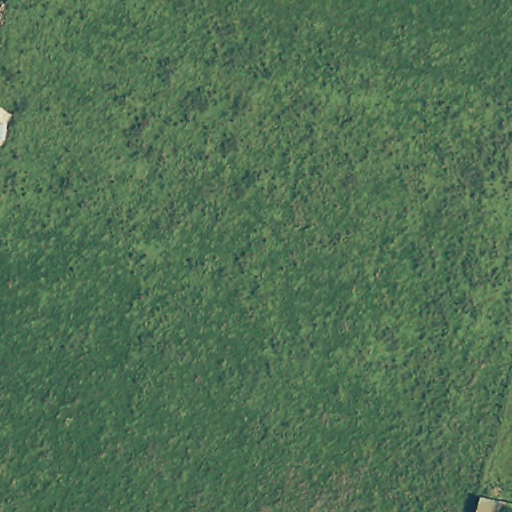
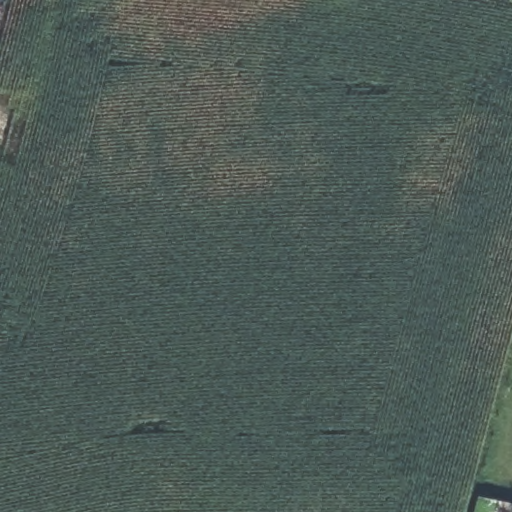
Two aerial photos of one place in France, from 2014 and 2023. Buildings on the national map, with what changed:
[]

